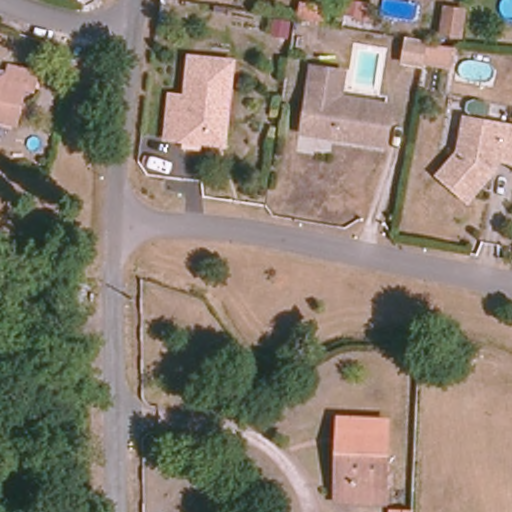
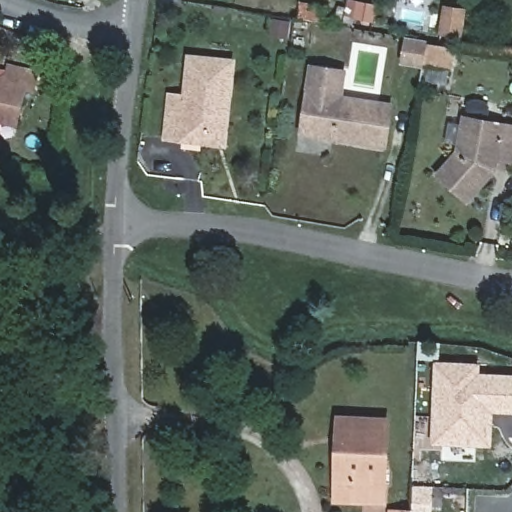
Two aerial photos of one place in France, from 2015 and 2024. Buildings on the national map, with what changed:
unchanged [(299,18),(302,4),(322,8),(319,22),(299,18)]
unchanged [(466,17),(462,42),(451,40),(441,38),(445,13),(455,15),(466,17)]
unchanged [(423,70),(404,66),(409,42),(428,45),(423,70)]
unchanged [(447,69),(425,66),(429,45),(449,49),(451,49),(447,69)]
unchanged [(181,139),(164,137),(169,94),(184,96),(189,56),(232,61),(228,97),(223,143),(181,139)]
unchanged [(9,65),(39,71),(34,90),(24,87),(16,124),(0,120),(0,70),(8,72),(9,65)]
unchanged [(302,132),(310,65),(342,69),(339,94),(390,101),(385,142),(349,137),(337,136),(302,132)]
unchanged [(467,197),(438,172),(457,148),(464,114),(512,123),(512,152),(511,158),(499,156),(494,166),(467,197)]
new [(478,366),(478,376),(512,378),(512,410),(491,410),(490,445),(435,442),(439,365),(478,366)]
unchanged [(339,418),(388,420),(385,484),(344,483),(345,438),(338,438),(339,418)]
unchanged [(345,438),(344,483),(385,484),(384,503),(335,501),(338,438),(345,438)]
unchanged [(412,509),(411,512),(389,512),(389,508),(412,509)]

